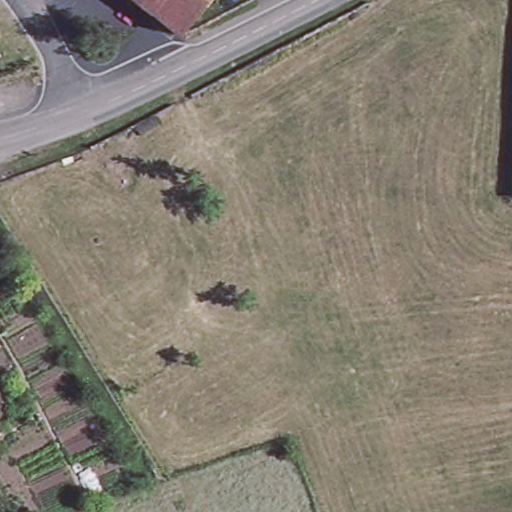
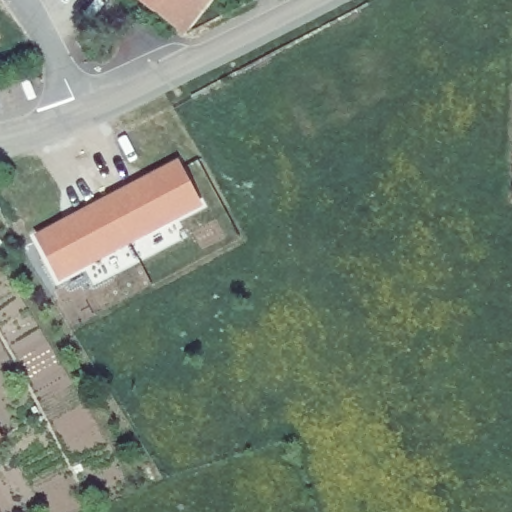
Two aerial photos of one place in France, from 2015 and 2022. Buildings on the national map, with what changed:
unchanged [(148,0),(166,0),(159,9),(148,0)]
unchanged [(186,31),(159,9),(166,0),(211,0),(187,30),(186,31)]
new [(167,167),(195,223),(58,297),(35,243),(167,167)]

